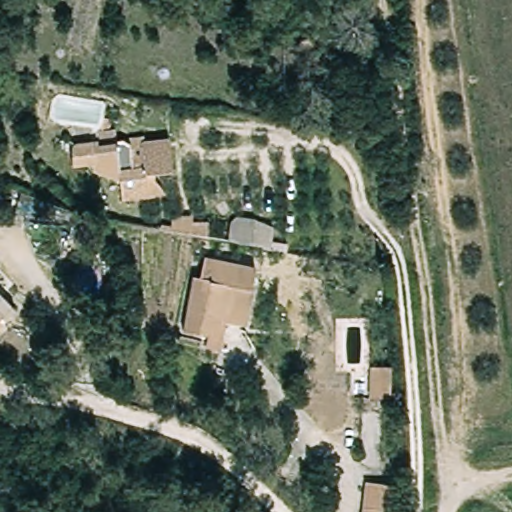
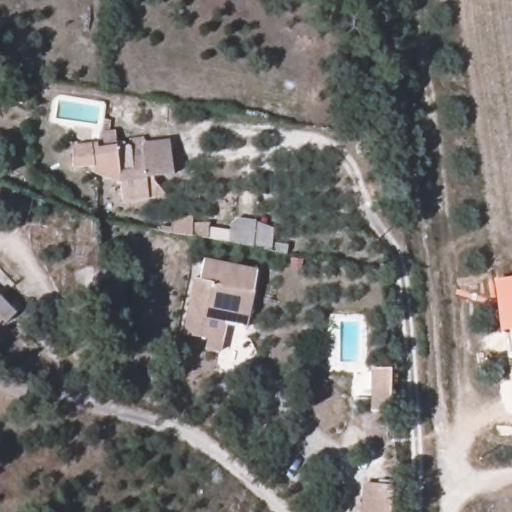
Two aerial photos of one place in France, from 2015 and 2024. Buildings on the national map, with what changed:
unchanged [(132,162),(143,160),(141,147),(169,143),(173,174),(145,177),(148,202),(125,205),(122,190),(116,146),(128,144),(132,162)]
unchanged [(88,145),(116,146),(122,190),(95,180),(94,170),(74,172),(72,147),(88,145)]
unchanged [(173,229),(177,216),(195,218),(194,233),(173,229)]
unchanged [(253,249),(217,243),(220,221),(256,226),(253,249)]
unchanged [(200,283),(206,260),(255,271),(250,292),(232,289),(218,356),(206,353),(209,341),(181,335),(192,281),(200,283)]
new [(512,277),(512,329),(500,331),(493,280),(512,277)]
unchanged [(0,321),(0,309),(6,315),(0,321)]
unchanged [(392,365),(391,398),(368,398),(369,365),(392,365)]
unchanged [(388,512),(361,512),(365,480),(392,483),(388,512)]

